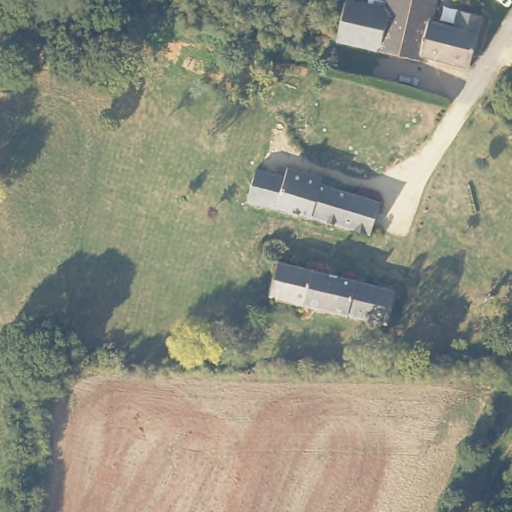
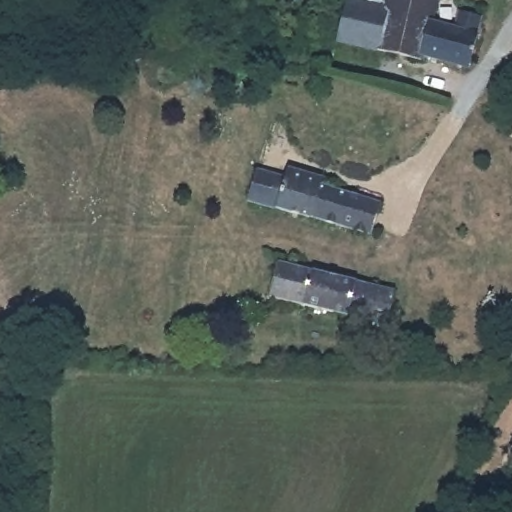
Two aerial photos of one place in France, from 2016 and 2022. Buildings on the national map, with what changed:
unchanged [(427,22),(452,28),(455,16),(476,23),(463,74),(329,44),(336,19),(340,4),(376,12),(379,0),(433,0),(427,22)]
unchanged [(308,175),(307,179),(372,196),(362,229),(242,195),(249,169),(274,176),(278,166),(308,175)]
unchanged [(387,292),(377,331),(260,303),(271,262),(387,292)]

